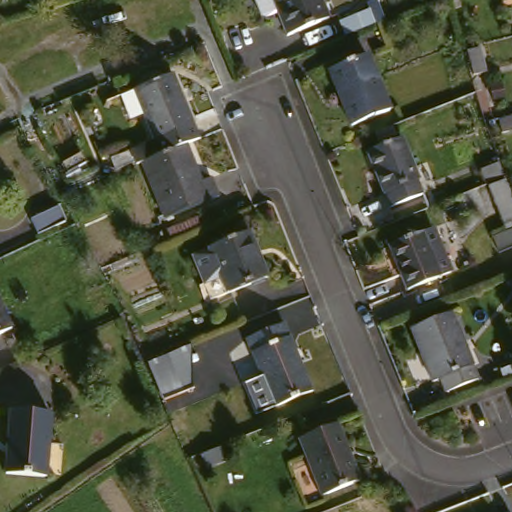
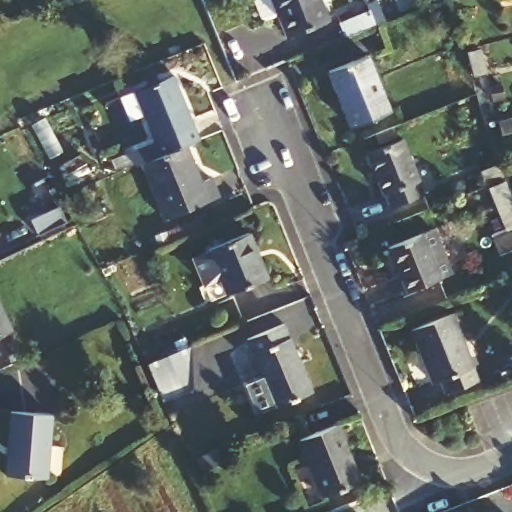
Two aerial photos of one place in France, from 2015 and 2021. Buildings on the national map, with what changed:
unchanged [(279,0),(333,0),(325,3),(331,21),(292,35),(279,0)]
unchanged [(395,110),(357,124),(335,66),(373,51),(395,110)]
unchanged [(188,76),(212,141),(210,141),(196,147),(170,156),(153,162),(140,167),(133,149),(161,139),(144,92),(188,76)]
unchanged [(426,178),(423,179),(428,195),(398,206),(377,151),(412,139),(426,178)]
unchanged [(210,184),(219,181),(225,197),(174,217),(153,162),(170,156),(196,147),(210,184)]
unchanged [(506,217),(488,168),(506,162),(512,177),(512,216),(506,217)]
unchanged [(55,202),(62,218),(34,230),(27,215),(55,202)]
unchanged [(398,241),(427,230),(439,226),(453,268),(442,272),(412,283),(398,241)]
unchanged [(255,231),(272,275),(235,290),(218,245),(255,231)]
unchanged [(0,335),(0,284),(18,327),(0,335)]
unchanged [(460,316),(485,380),(450,392),(445,378),(437,381),(419,331),(460,316)]
unchanged [(319,388),(281,403),(255,336),(295,322),(319,388)]
unchanged [(174,347),(182,364),(150,377),(146,367),(142,358),(174,347)]
unchanged [(509,360),(512,369),(512,372),(503,375),(499,363),(509,360)]
unchanged [(55,414),(51,476),(15,475),(19,412),(55,414)]
unchanged [(365,476),(330,491),(307,435),(343,421),(365,476)]

